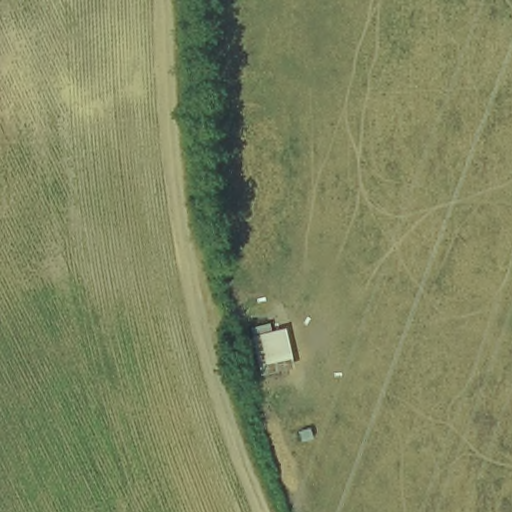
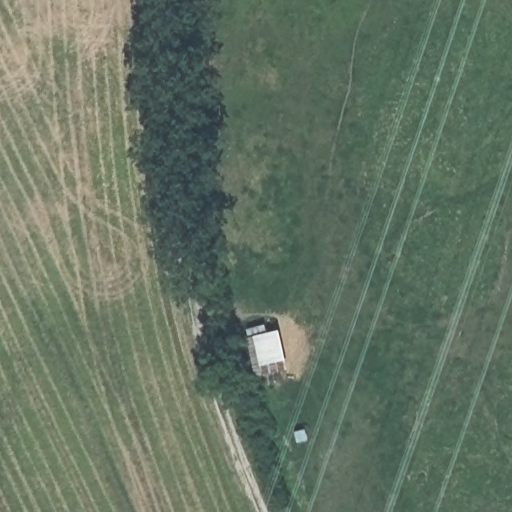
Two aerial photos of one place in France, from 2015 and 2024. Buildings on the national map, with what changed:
unchanged [(248,333),(280,327),(288,367),(257,373),(248,333)]

